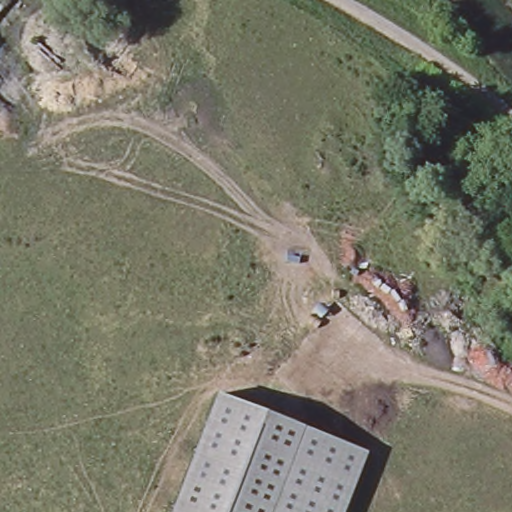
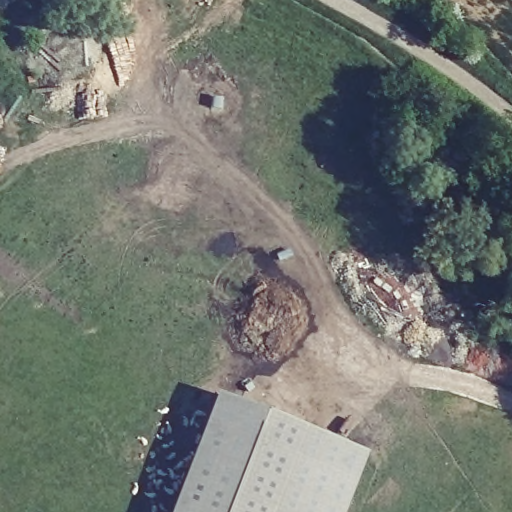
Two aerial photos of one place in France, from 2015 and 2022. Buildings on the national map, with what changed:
unchanged [(267,512),(173,512),(220,391),(302,424),(267,512)]
unchanged [(367,449),(342,512),(267,512),(302,424),(367,449)]

